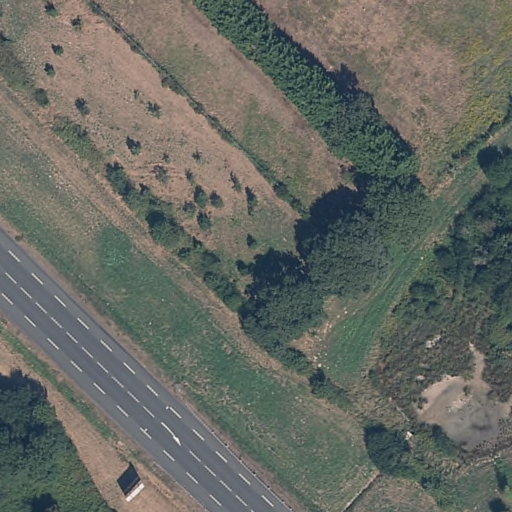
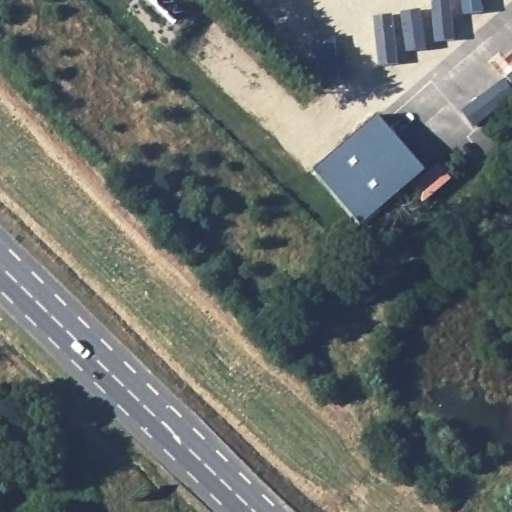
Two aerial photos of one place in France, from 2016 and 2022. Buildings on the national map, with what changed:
new [(374,115),(422,171),(366,220),(318,164),(374,115)]

